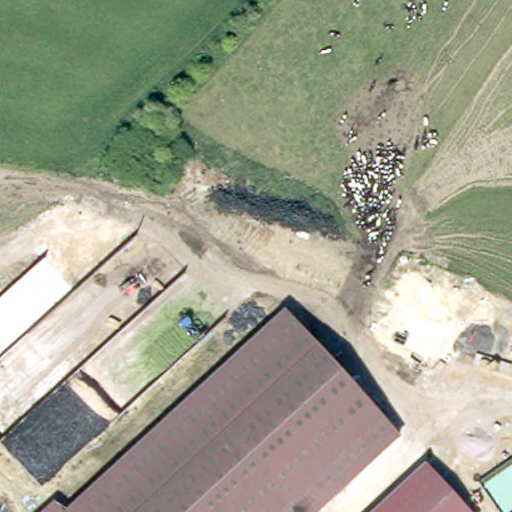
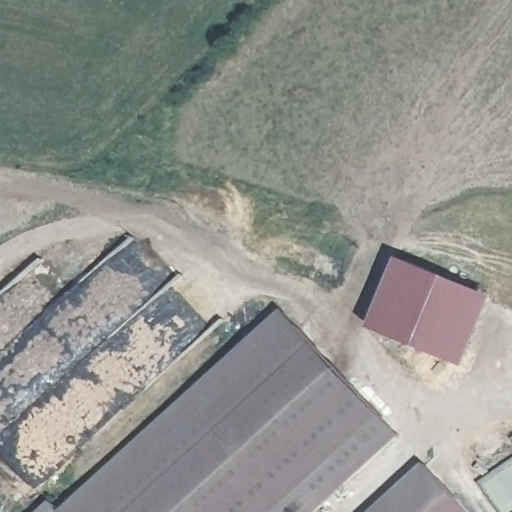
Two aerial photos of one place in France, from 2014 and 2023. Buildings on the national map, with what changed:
new [(496,298),(468,369),(373,329),(401,259),(496,298)]
unchanged [(396,438),(314,512),(61,512),(282,312),(396,438)]
unchanged [(371,512),(426,463),(470,512),(371,512)]
unchanged [(57,512),(37,512),(48,502),(57,512)]

